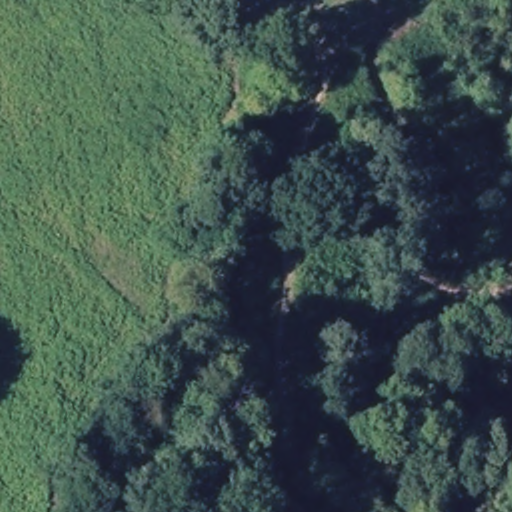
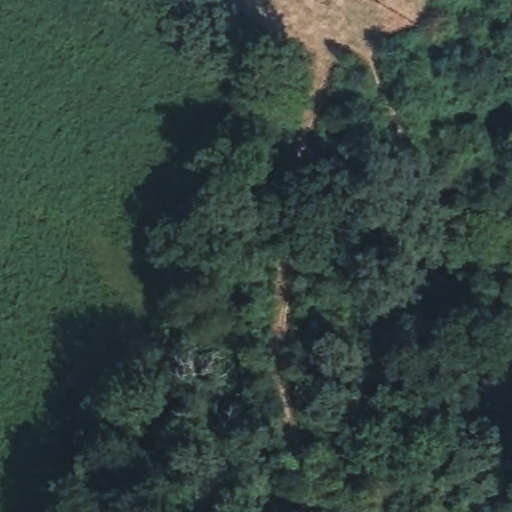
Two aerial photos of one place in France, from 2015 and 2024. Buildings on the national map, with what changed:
unchanged [(366,1),(363,0),(366,0),(366,1)]

